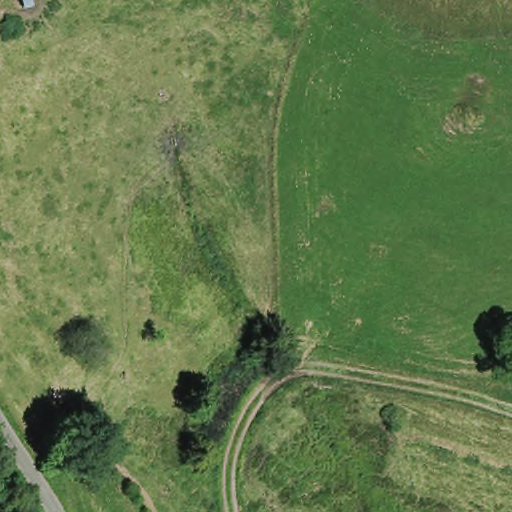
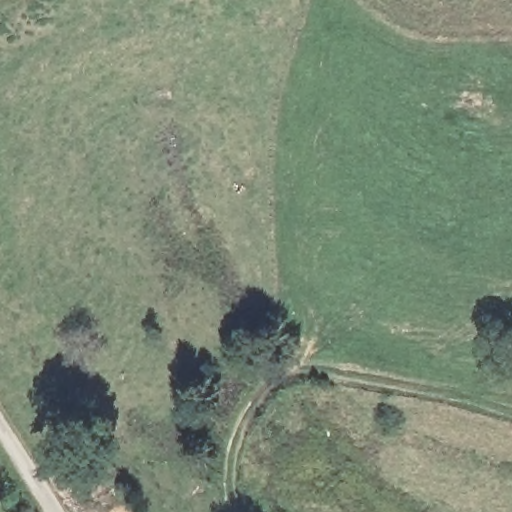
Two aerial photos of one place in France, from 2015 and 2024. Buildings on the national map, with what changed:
[]

